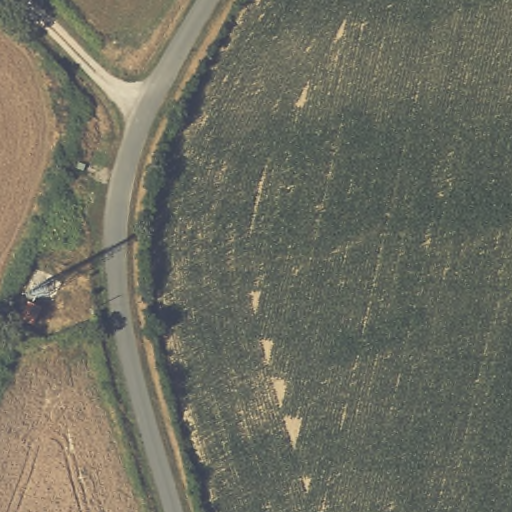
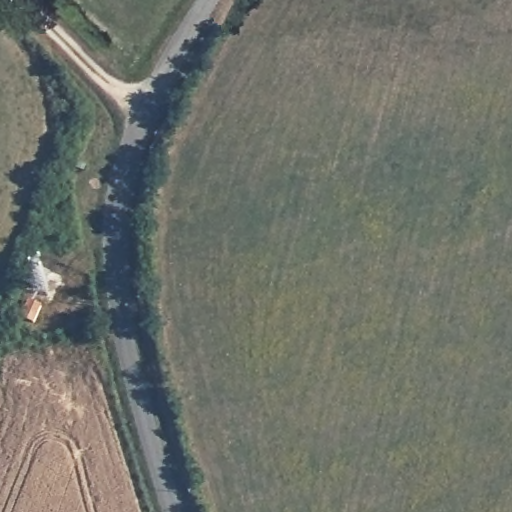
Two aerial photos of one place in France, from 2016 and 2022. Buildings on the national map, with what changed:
unchanged [(75,144),(102,154),(65,248),(39,238),(75,144)]
unchanged [(33,325),(22,320),(29,303),(39,308),(33,325)]

